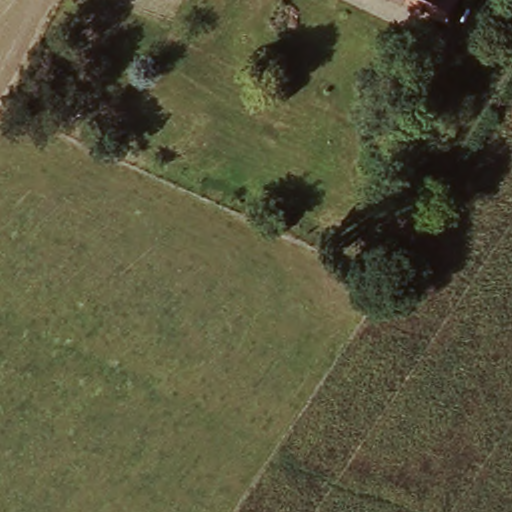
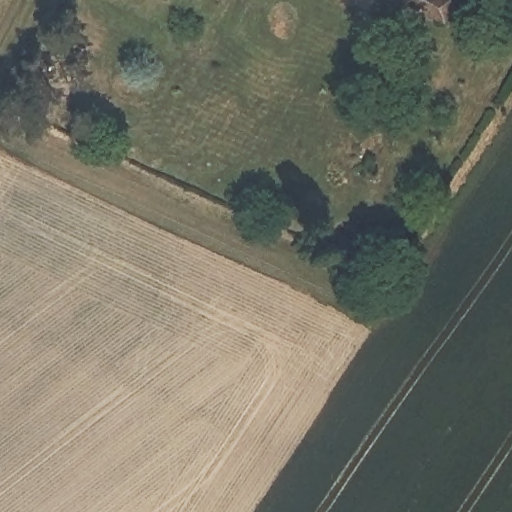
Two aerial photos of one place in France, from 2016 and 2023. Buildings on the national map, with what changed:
unchanged [(427,9),(423,23),(401,10),(407,1),(405,0),(459,0),(450,22),(427,9)]

